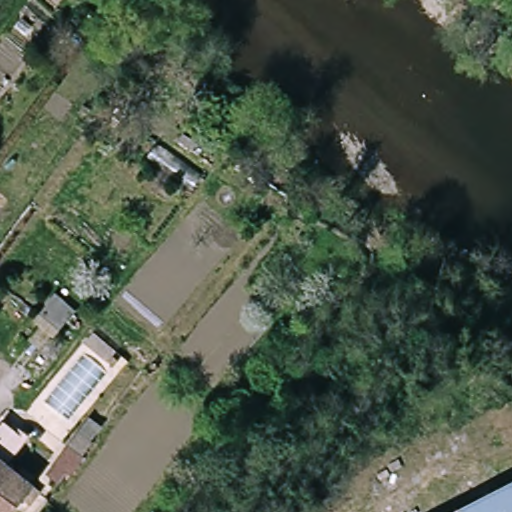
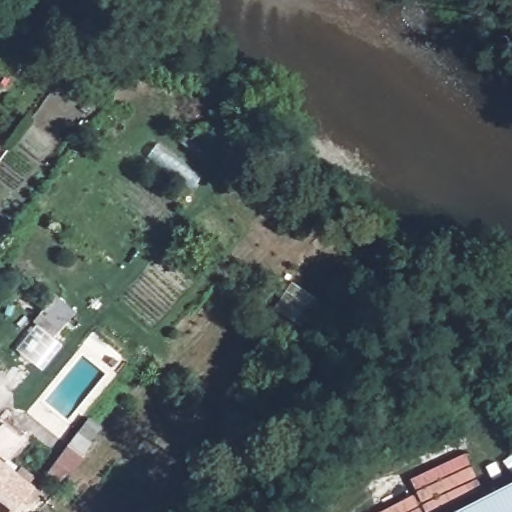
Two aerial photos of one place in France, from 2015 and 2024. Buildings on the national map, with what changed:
unchanged [(0,512),(0,431),(11,417),(31,433),(11,457),(39,480),(15,512),(0,512)]
new [(410,479),(465,453),(483,490),(438,512),(380,512),(416,495),(410,479)]
unchanged [(56,485),(46,477),(56,463),(67,471),(56,485)]
unchanged [(451,512),(512,482),(512,512),(451,512)]

